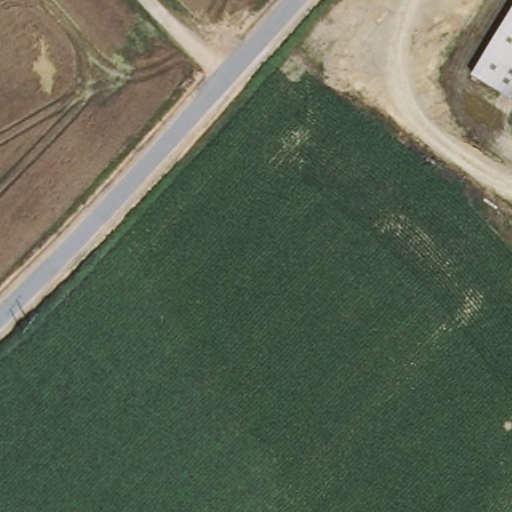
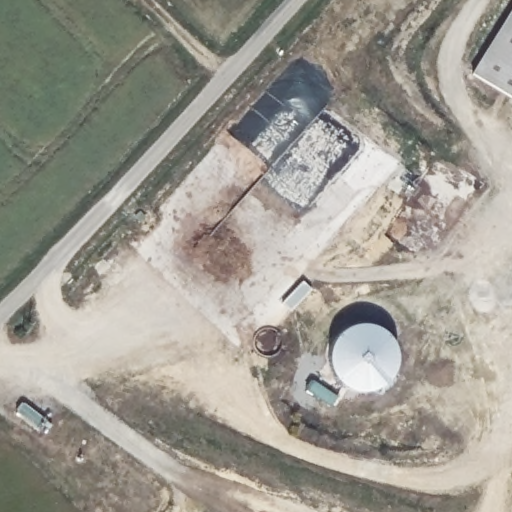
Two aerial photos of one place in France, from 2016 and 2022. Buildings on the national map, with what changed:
unchanged [(470,74),(512,5),(512,99),(470,74)]
new [(364,322),(376,325),(385,329),(392,336),(397,346),(399,357),(397,368),(391,377),(384,384),(374,390),(361,391),(350,388),(340,382),(332,374),(328,364),(328,351),(332,340),(339,331),(347,327),(357,324),(364,322)]

